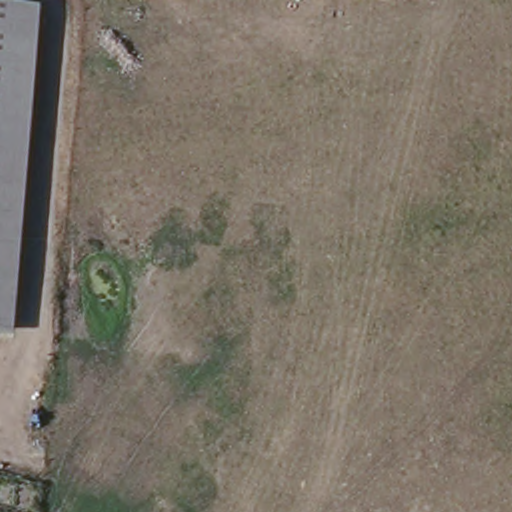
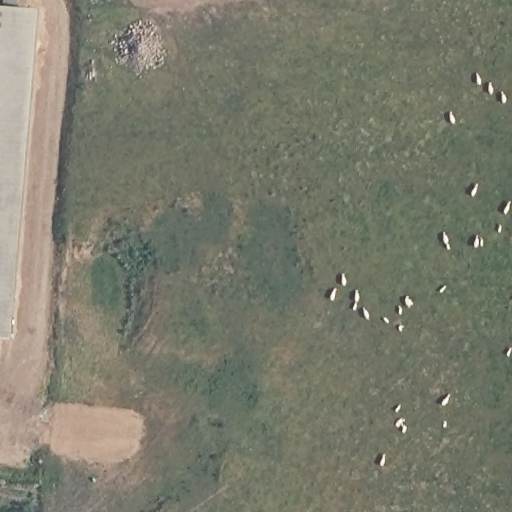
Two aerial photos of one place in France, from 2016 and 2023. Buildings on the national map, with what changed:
unchanged [(44,6),(20,335),(12,335),(0,334),(0,3),(44,6)]

